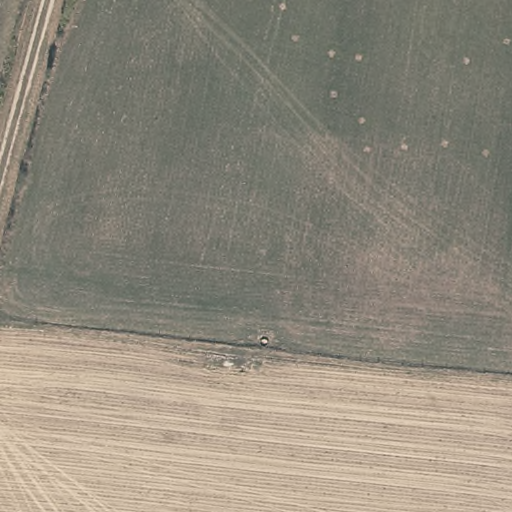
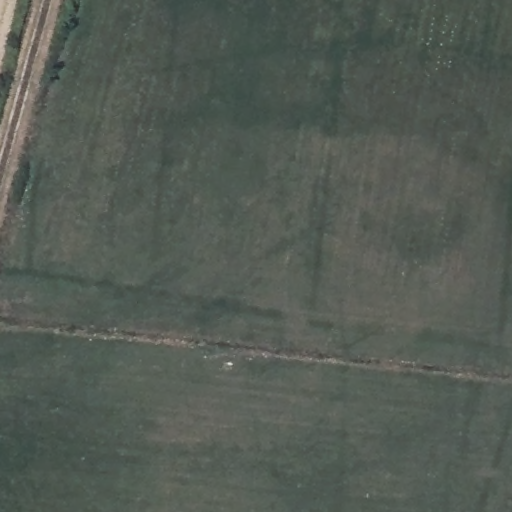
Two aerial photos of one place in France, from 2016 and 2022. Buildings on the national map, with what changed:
[]

